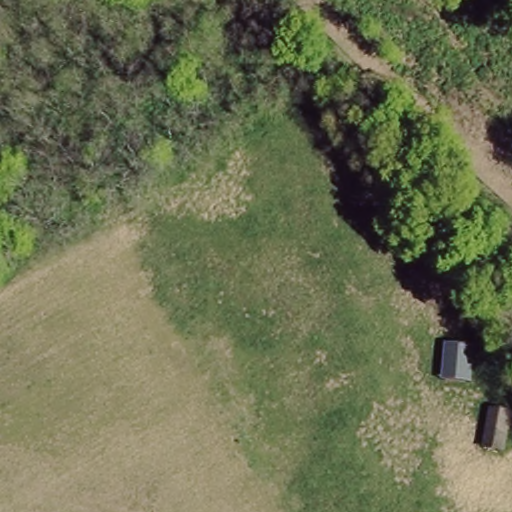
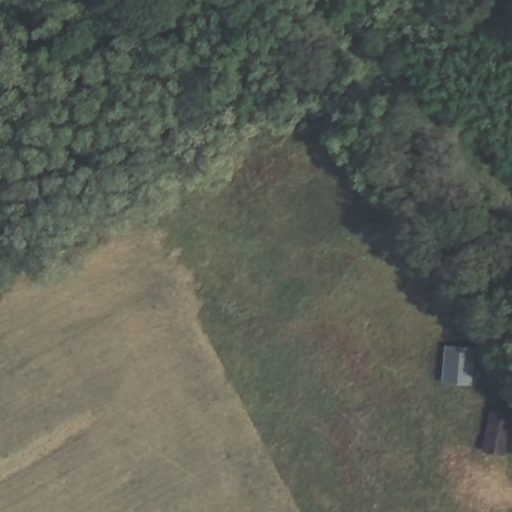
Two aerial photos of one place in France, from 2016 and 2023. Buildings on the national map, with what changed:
unchanged [(473,343),(471,382),(442,380),(444,341),(473,343)]
unchanged [(510,413),(508,454),(488,453),(490,412),(510,413)]

